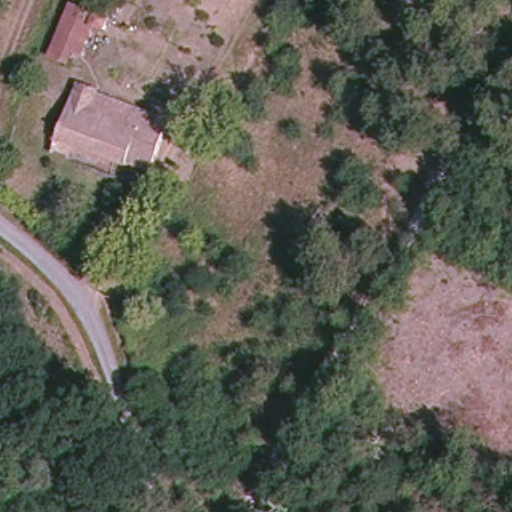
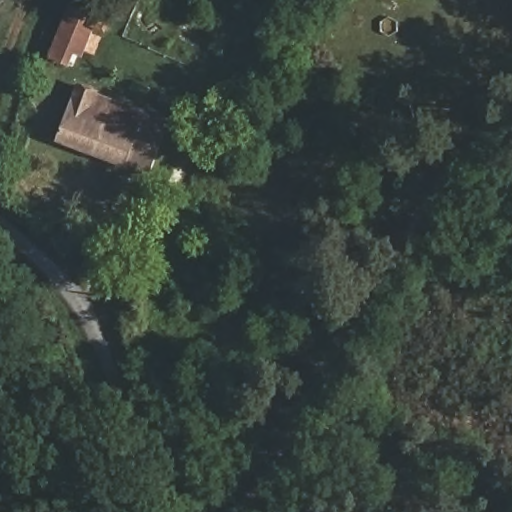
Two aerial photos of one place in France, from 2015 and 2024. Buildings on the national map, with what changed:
unchanged [(76,52),(70,66),(51,57),(72,1),(112,16),(107,33),(97,30),(86,56),(76,52)]
unchanged [(74,83),(110,96),(147,110),(142,124),(127,166),(54,137),(74,83)]

